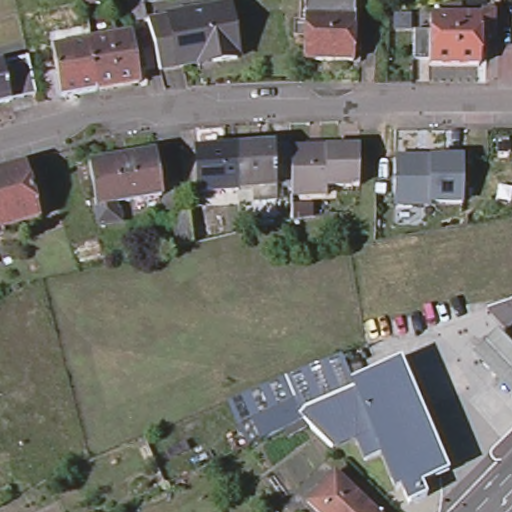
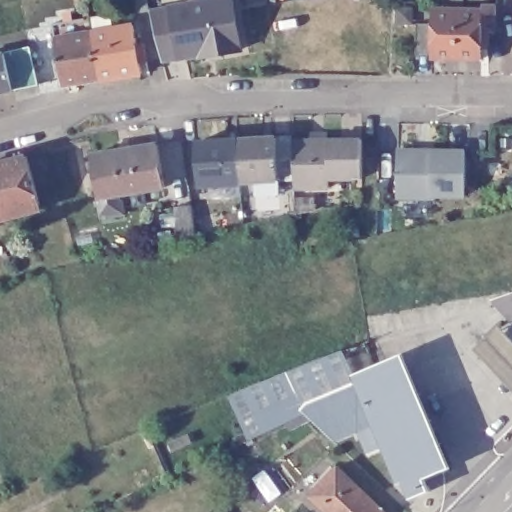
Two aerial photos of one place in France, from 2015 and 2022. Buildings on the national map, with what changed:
unchanged [(155,0),(155,1),(159,16),(144,20),(139,0),(155,0)]
unchanged [(202,10),(201,6),(235,0),(238,0),(239,7),(248,55),(208,62),(207,60),(188,64),(170,67),(160,18),(178,15),(202,10)]
demolished [(356,0),(355,16),(306,14),(307,0),(356,0)]
demolished [(375,0),(375,2),(361,4),(361,0),(375,0)]
unchanged [(491,3),(495,2),(496,8),(492,9),(491,3)]
demolished [(355,34),(361,34),(361,51),(353,51),(353,60),(304,59),(306,14),(355,16),(355,34)]
unchanged [(430,34),(430,16),(498,17),(498,37),(493,37),(493,54),(486,54),(486,65),(429,64),(430,61),(412,60),(412,33),(430,34)]
unchanged [(102,23),(103,30),(98,31),(93,32),(92,26),(97,25),(102,23)]
unchanged [(96,34),(137,27),(140,45),(147,45),(150,62),(143,64),(145,76),(102,83),(94,34),(96,34)]
unchanged [(58,40),(94,34),(102,83),(66,89),(58,40)]
unchanged [(34,54),(42,91),(17,96),(0,100),(0,61),(9,59),(34,54)]
unchanged [(291,129),(308,131),(313,138),(325,138),(325,133),(360,132),(360,171),(327,171),(327,180),(292,181),(291,172),(277,173),(277,187),(255,188),(253,175),(240,175),(237,132),(264,131),(276,130),(291,129)]
unchanged [(197,135),(237,132),(240,175),(200,178),(197,135)]
unchanged [(90,162),(155,151),(162,194),(96,206),(90,162)]
unchanged [(400,151),(465,151),(463,202),(398,201),(400,151)]
unchanged [(43,216),(0,228),(0,172),(30,163),(43,216)]
unchanged [(170,206),(187,202),(194,232),(177,237),(170,206)]
unchanged [(208,211),(222,208),(227,224),(213,228),(200,231),(196,215),(208,211)]
unchanged [(474,346),(495,324),(512,341),(512,387),(474,346)]
unchanged [(399,490),(397,484),(385,455),(367,462),(358,438),(334,447),(305,421),(304,422),(265,440),(256,420),(290,404),(301,415),(306,409),(357,389),(398,372),(401,379),(437,467),(440,473),(421,481),(428,498),(411,505),(405,488),(399,490)]
unchanged [(313,503),(340,475),(378,512),(322,512),(313,503)]

